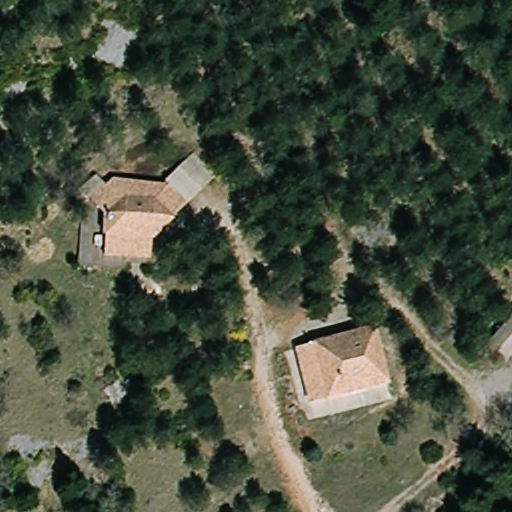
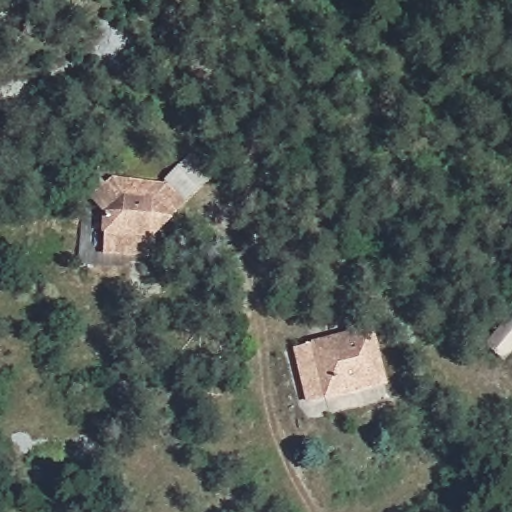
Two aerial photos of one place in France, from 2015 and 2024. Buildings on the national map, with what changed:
unchanged [(182,159),(206,183),(144,245),(143,257),(100,256),(101,230),(121,213),(120,194),(100,213),(86,197),(110,176),(161,179),(182,159)]
unchanged [(488,343),(512,317),(512,354),(507,360),(488,343)]
unchanged [(372,327),(387,382),(307,405),(293,349),(372,327)]

